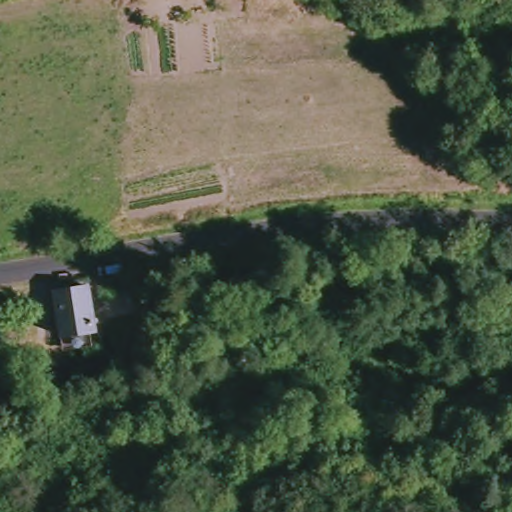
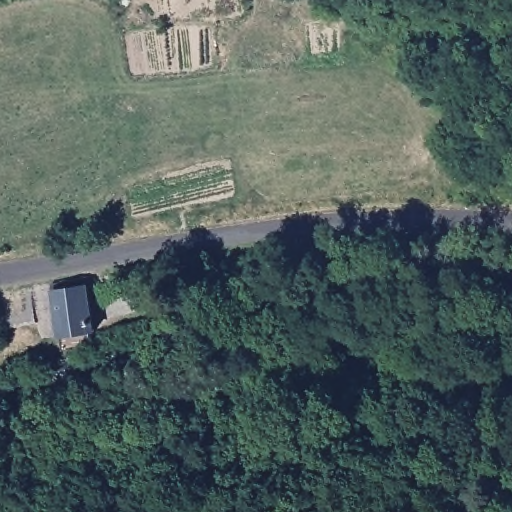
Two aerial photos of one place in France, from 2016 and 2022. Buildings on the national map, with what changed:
unchanged [(60,342),(57,328),(51,289),(90,283),(91,289),(96,322),(90,323),(91,335),(60,342)]

